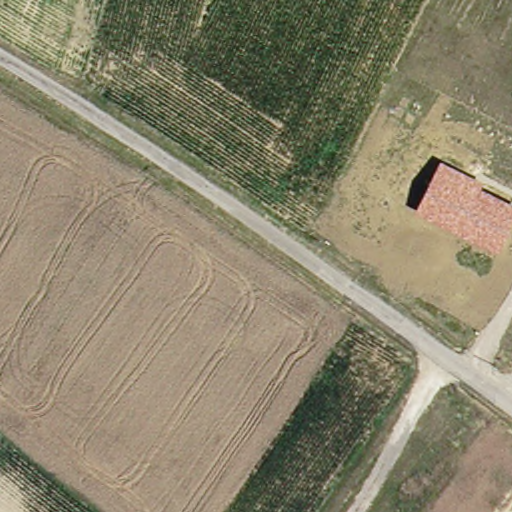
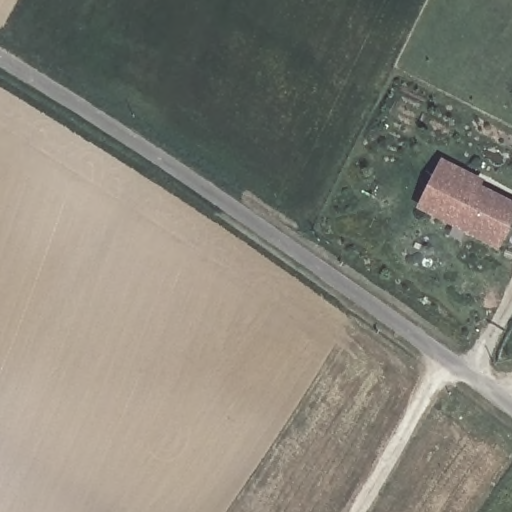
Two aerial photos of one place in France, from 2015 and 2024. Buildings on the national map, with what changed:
unchanged [(485,177),(481,184),(512,200),(512,223),(498,252),(415,211),(443,157),(485,177)]

